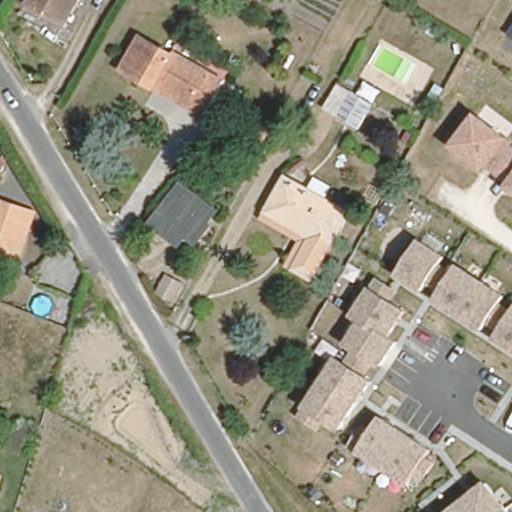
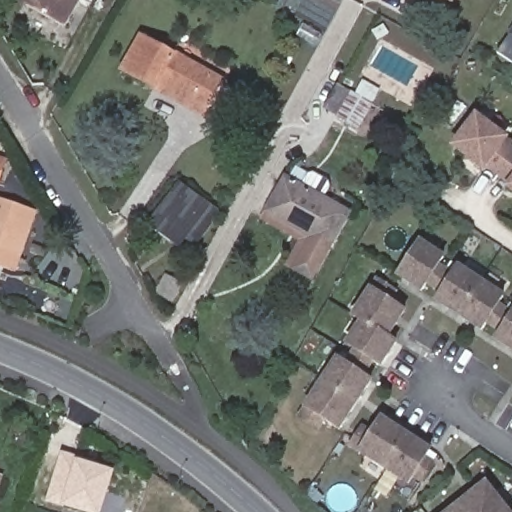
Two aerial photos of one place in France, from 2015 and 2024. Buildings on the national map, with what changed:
unchanged [(31,0),(74,0),(64,19),(31,0)]
new [(445,0),(455,0),(452,4),(445,0)]
unchanged [(508,36),(512,31),(512,38),(508,36)]
unchanged [(144,88),(112,71),(130,40),(166,60),(168,57),(213,82),(197,111),(193,117),(144,88)]
unchanged [(353,119),(320,100),(333,76),(366,95),(353,119)]
unchanged [(450,145),(478,114),(512,139),(512,191),(450,145)]
unchanged [(0,174),(0,156),(6,158),(0,174)]
unchanged [(308,239),(262,213),(280,180),(343,214),(325,247),(305,283),(288,275),(308,239)]
unchanged [(179,249),(149,228),(177,187),(207,207),(179,249)]
unchanged [(0,198),(31,209),(17,250),(15,259),(0,254),(0,198)]
unchanged [(277,268),(291,244),(255,224),(262,213),(308,239),(288,275),(277,268)]
unchanged [(396,280),(421,241),(512,298),(512,351),(396,280)]
unchanged [(390,300),(410,311),(393,336),(400,342),(383,371),(374,367),(368,377),(374,380),(341,432),(327,422),(321,432),(296,417),(336,357),(346,362),(355,350),(348,346),(363,320),(354,315),(374,277),(395,288),(390,300)]
unchanged [(411,486),(350,447),(364,426),(372,430),(382,417),(435,450),(411,486)]
unchanged [(12,425),(37,432),(30,458),(5,451),(12,425)]
new [(61,451),(78,457),(78,460),(115,472),(102,512),(76,512),(62,507),(47,502),(61,451)]
unchanged [(488,481),(512,511),(512,512),(448,512),(488,481)]

